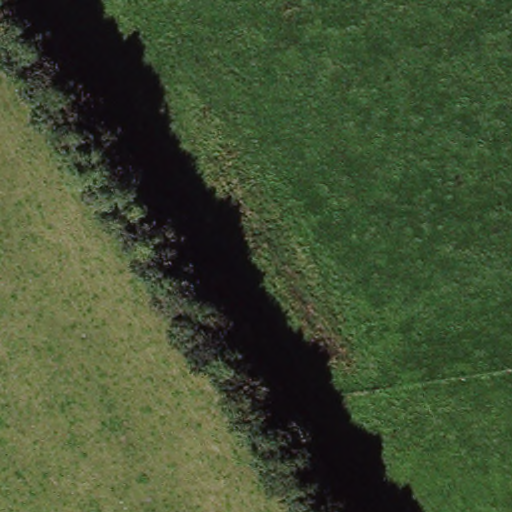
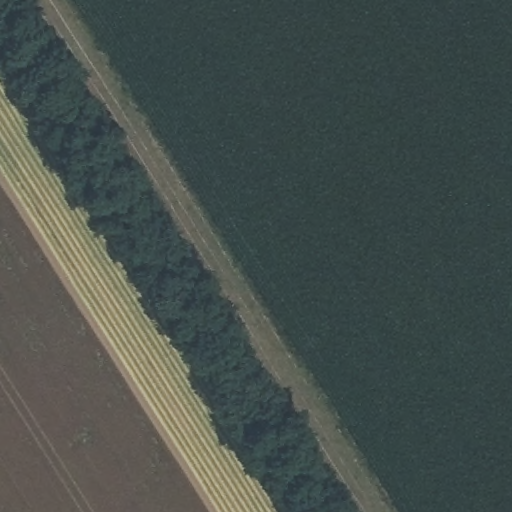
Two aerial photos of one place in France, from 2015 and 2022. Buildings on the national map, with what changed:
[]

